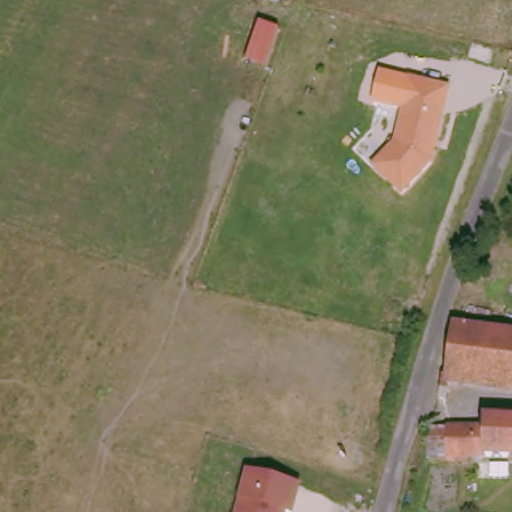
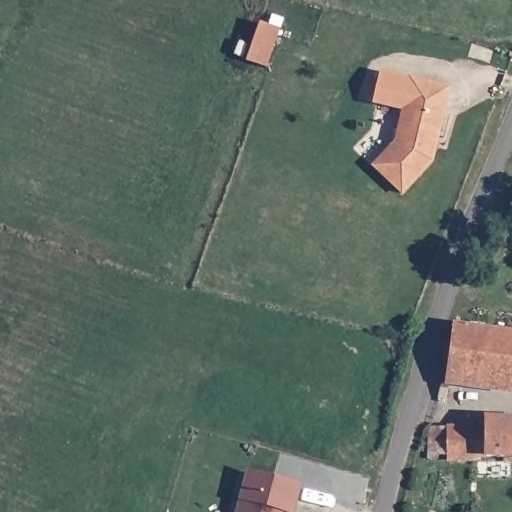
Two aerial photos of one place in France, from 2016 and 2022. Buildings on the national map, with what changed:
unchanged [(374,105),(380,72),(410,79),(402,111),(374,105)]
unchanged [(410,79),(449,87),(438,136),(431,140),(429,147),(433,152),(430,164),(401,193),(372,165),(395,142),(410,79)]
unchanged [(512,336),(512,386),(452,376),(462,328),(512,336)]
unchanged [(491,457),(472,457),(469,465),(434,459),(434,428),(451,428),(486,416),(512,416),(512,459),(491,457)]
unchanged [(241,502),(250,470),(305,485),(298,512),(238,512),(241,502)]

